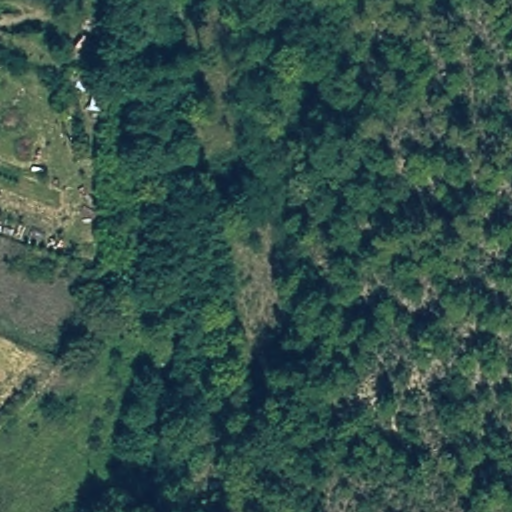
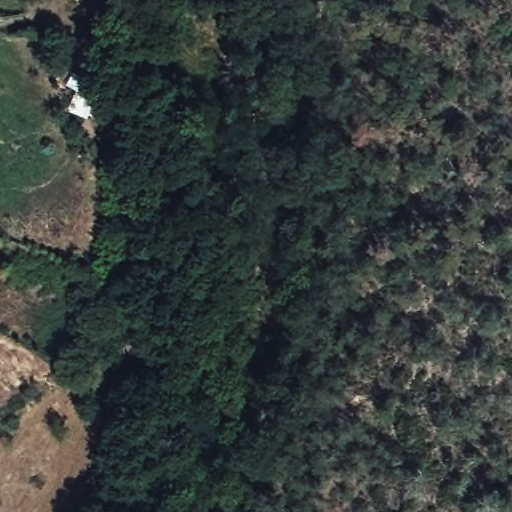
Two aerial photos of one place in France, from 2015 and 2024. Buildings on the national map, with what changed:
unchanged [(101,51),(86,71),(65,57),(82,35),(101,51)]
unchanged [(102,121),(100,136),(83,133),(83,121),(83,97),(60,83),(71,72),(88,84),(106,87),(102,121)]

